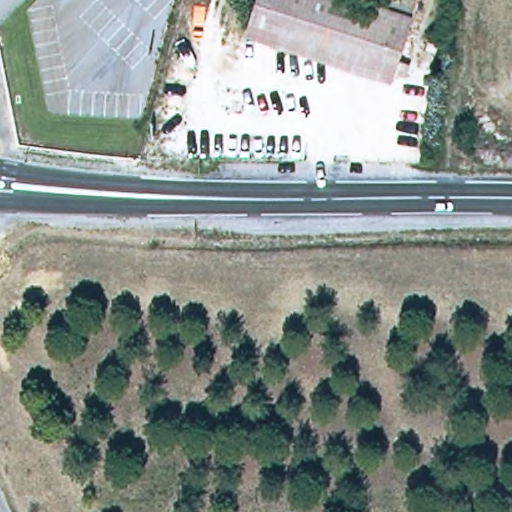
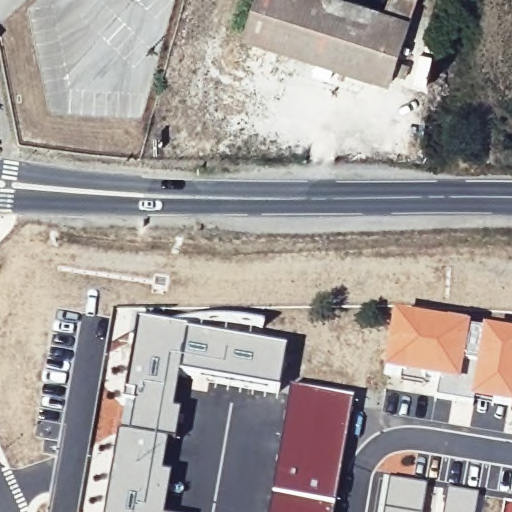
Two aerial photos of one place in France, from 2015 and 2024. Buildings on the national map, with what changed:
unchanged [(398,74),(246,36),(255,0),(389,0),(415,7),(398,74)]
new [(468,406),(433,401),(436,386),(381,376),(393,318),(512,338),(512,413),(468,406)]
new [(177,377),(169,413),(177,415),(172,444),(164,443),(159,476),(168,478),(162,512),(101,512),(114,435),(125,437),(131,410),(118,407),(133,322),(183,331),(183,335),(283,351),(277,394),(177,377)]
new [(266,512),(288,388),(351,400),(332,512),(266,512)]
new [(421,512),(377,512),(382,480),(425,486),(421,512)]
new [(479,495),(476,512),(441,512),(445,489),(479,495)]
new [(512,501),(512,512),(502,512),(504,499),(512,501)]

